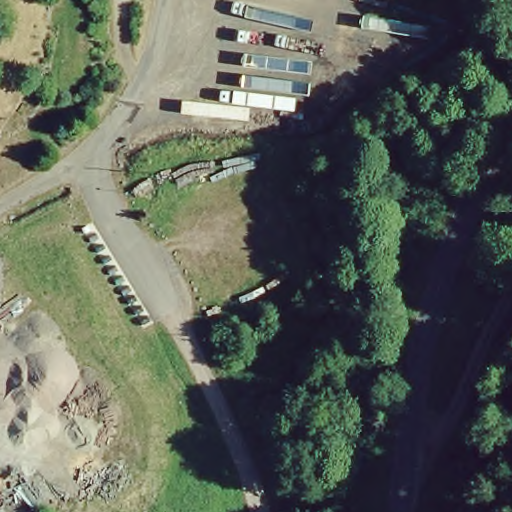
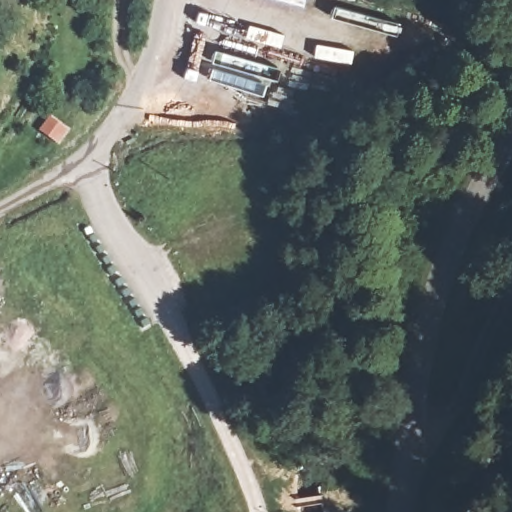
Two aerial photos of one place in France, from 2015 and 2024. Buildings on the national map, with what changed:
[]

